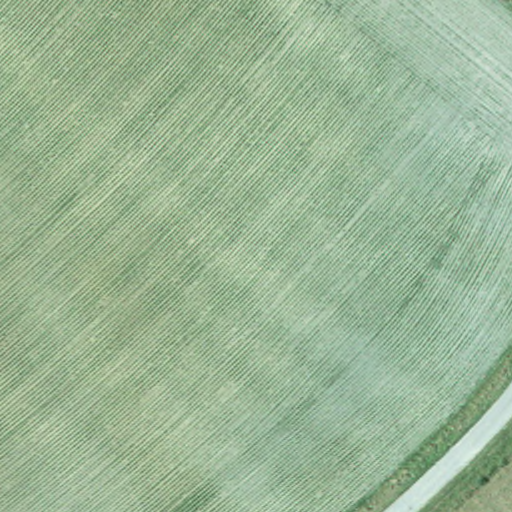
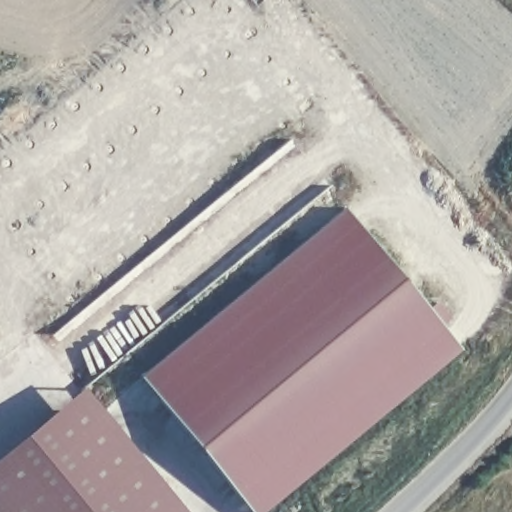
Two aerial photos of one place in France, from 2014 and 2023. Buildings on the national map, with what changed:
new [(263,512),(253,512),(140,376),(345,207),(462,348),(263,512)]
new [(187,512),(0,512),(0,455),(83,386),(187,512)]

